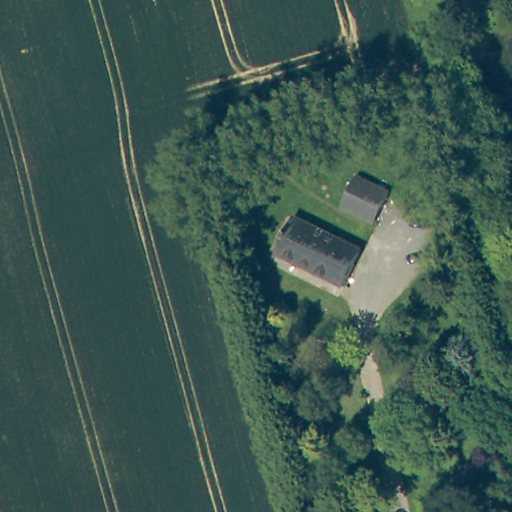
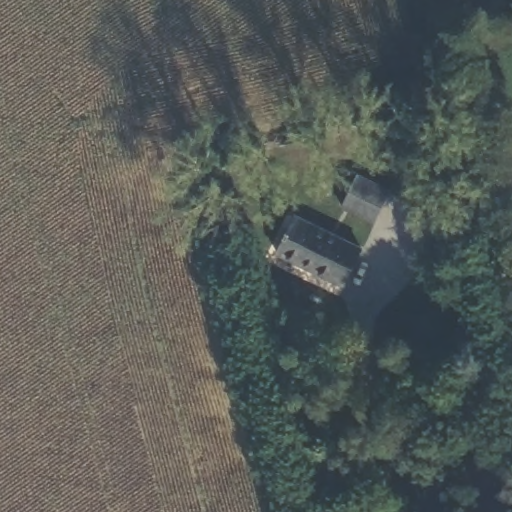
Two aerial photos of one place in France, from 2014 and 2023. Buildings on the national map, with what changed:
unchanged [(343,200),(358,170),(388,186),(374,217),(343,200)]
unchanged [(362,248),(342,286),(278,252),(298,216),(335,234),(362,248)]

